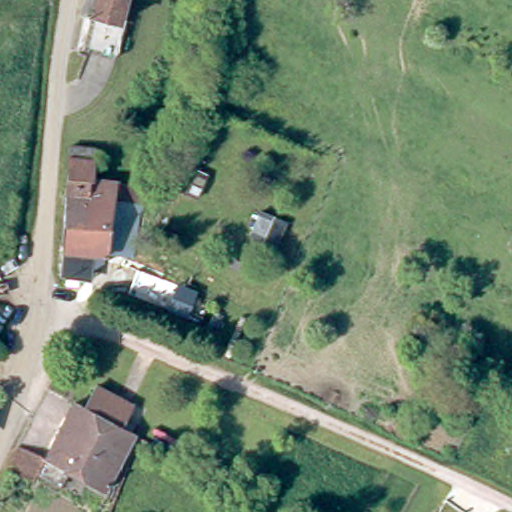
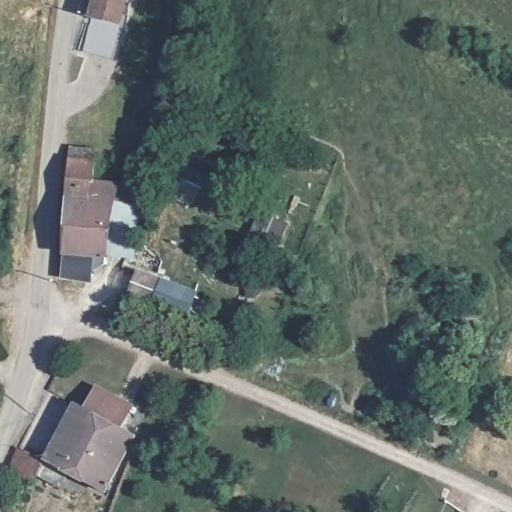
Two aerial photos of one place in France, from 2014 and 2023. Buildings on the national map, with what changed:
unchanged [(117,0),(112,17),(88,12),(91,0),(117,0)]
unchanged [(80,48),(88,12),(112,17),(119,18),(109,54),(80,48)]
unchanged [(113,226),(107,255),(100,253),(100,256),(87,255),(88,279),(59,277),(59,254),(62,197),(65,161),(66,148),(90,150),(89,162),(88,180),(114,181),(110,202),(118,203),(113,226)]
unchanged [(4,472),(14,448),(41,461),(70,403),(80,408),(90,387),(127,406),(116,428),(130,435),(101,491),(62,473),(55,488),(33,477),(29,485),(4,472)]

